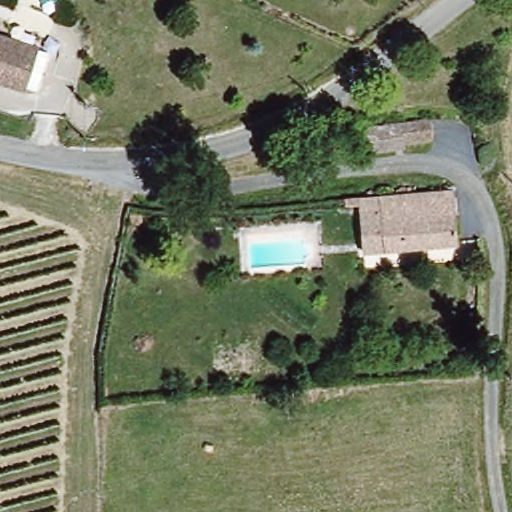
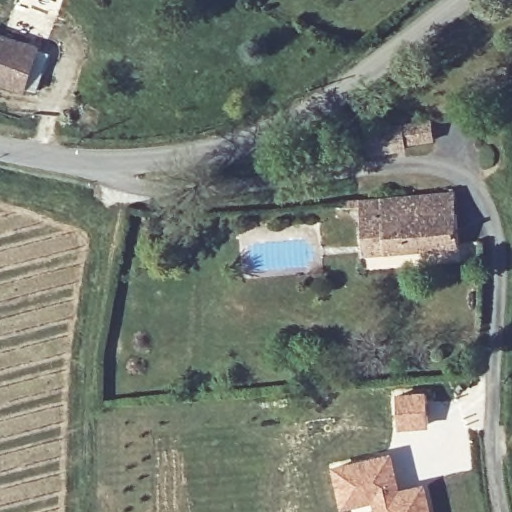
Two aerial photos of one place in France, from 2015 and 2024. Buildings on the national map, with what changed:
unchanged [(43,58),(32,96),(15,91),(13,96),(0,92),(0,45),(43,58)]
unchanged [(363,131),(430,125),(432,144),(400,147),(400,151),(363,153),(363,131)]
unchanged [(357,223),(378,221),(378,219),(357,222),(357,212),(340,214),(337,204),(454,195),(457,248),(382,253),(361,256),(357,223)]
new [(426,390),(430,427),(397,429),(395,393),(426,390)]
new [(400,487),(425,482),(432,512),(371,512),(368,504),(340,511),(328,465),(391,451),(400,487)]

